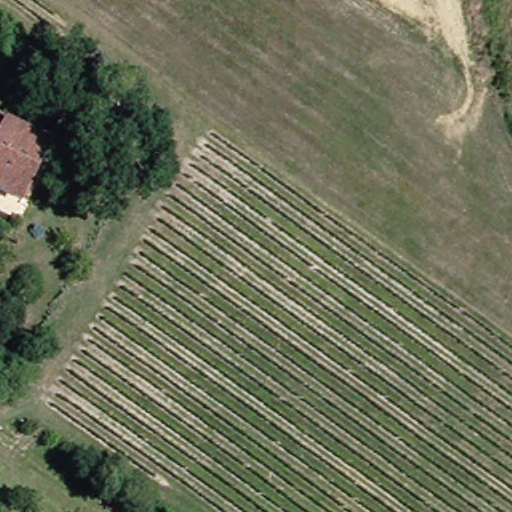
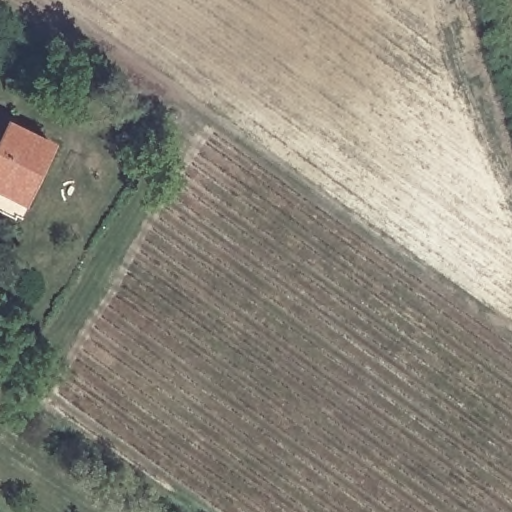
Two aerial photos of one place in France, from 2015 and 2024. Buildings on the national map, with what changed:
unchanged [(17,122),(11,132),(0,127),(0,113),(17,122)]
unchanged [(34,211),(0,193),(0,179),(5,168),(0,165),(0,155),(4,147),(13,152),(21,136),(62,156),(34,211)]

